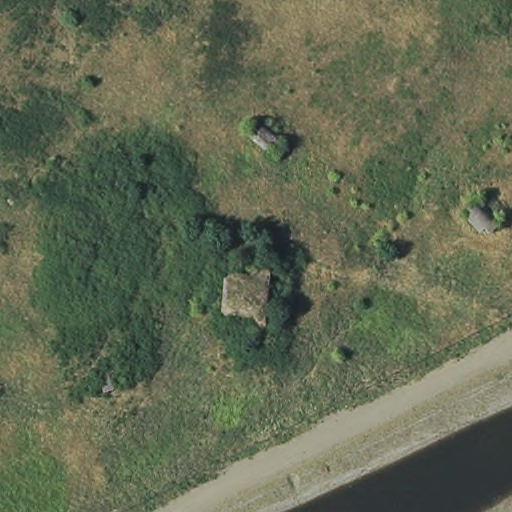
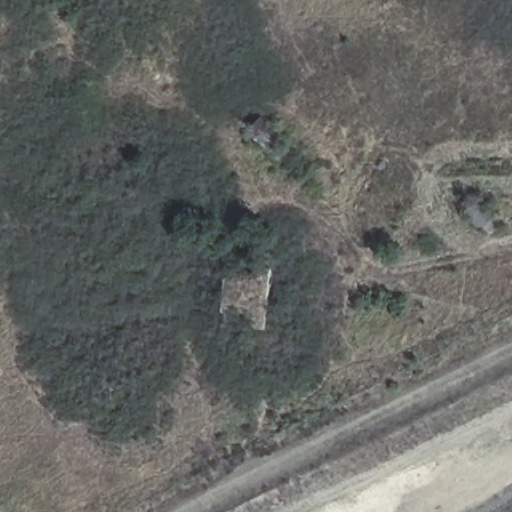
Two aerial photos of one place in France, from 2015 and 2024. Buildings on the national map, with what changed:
unchanged [(274,313),(233,315),(230,279),(272,277),(274,313)]

